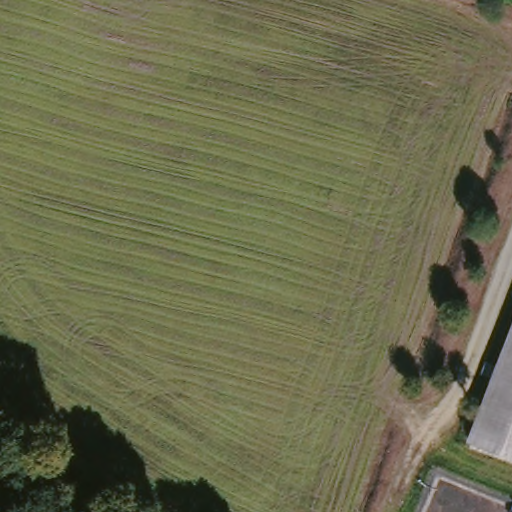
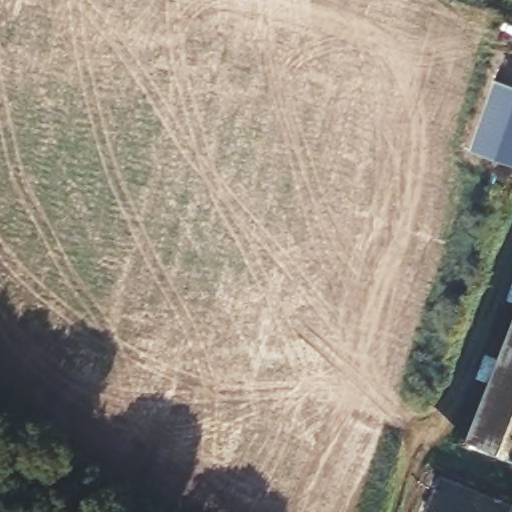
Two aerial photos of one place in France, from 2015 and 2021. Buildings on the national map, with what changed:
new [(512,166),(469,151),(494,82),(512,87),(512,166)]
unchanged [(512,466),(468,449),(512,330),(512,466)]

